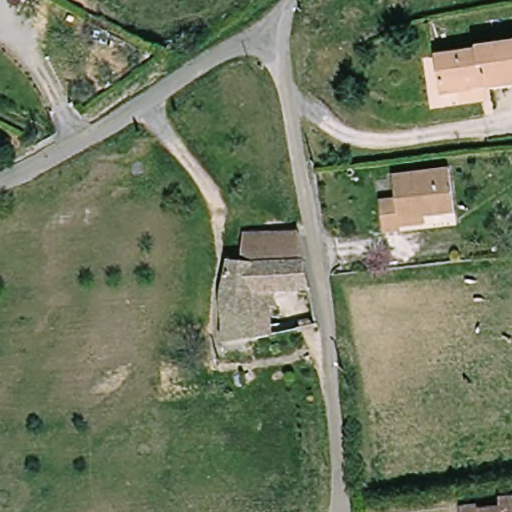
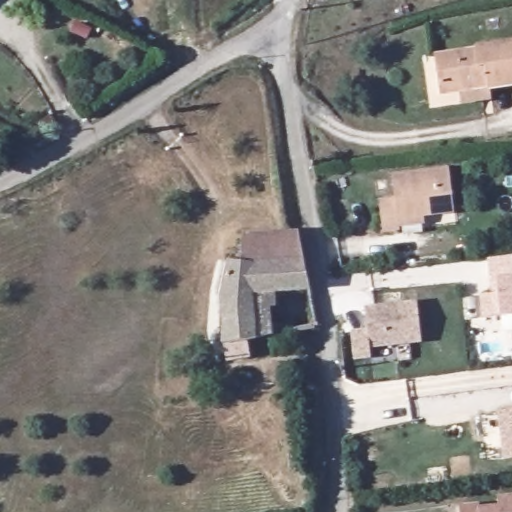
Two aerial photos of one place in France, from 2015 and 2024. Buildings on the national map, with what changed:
unchanged [(473,47),(512,45),(512,92),(494,94),(487,93),(487,91),(451,94),(438,95),(434,59),(472,55),(473,47)]
unchanged [(403,232),(384,235),(380,197),(396,195),(397,174),(449,168),(453,209),(455,225),(403,232)]
unchanged [(312,295),(277,299),(275,312),(271,312),(271,338),(228,345),(221,294),(230,259),(241,260),(242,235),(298,237),(312,295)]
new [(482,321),(480,297),(493,295),(489,261),(512,259),(512,317),(503,317),(482,321)]
new [(370,349),(372,359),(354,361),(351,329),(366,328),(364,307),(417,301),(422,343),(370,349)]
new [(499,411),(512,410),(512,460),(505,460),(499,411)]
unchanged [(500,511),(500,502),(512,501),(512,512),(493,512),(500,511)]
unchanged [(477,510),(478,512),(466,512),(477,510)]

